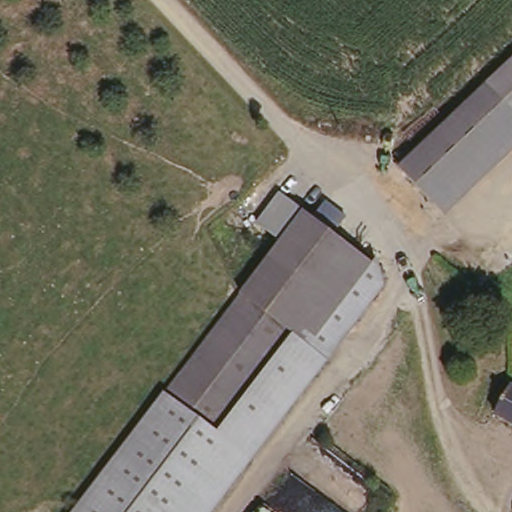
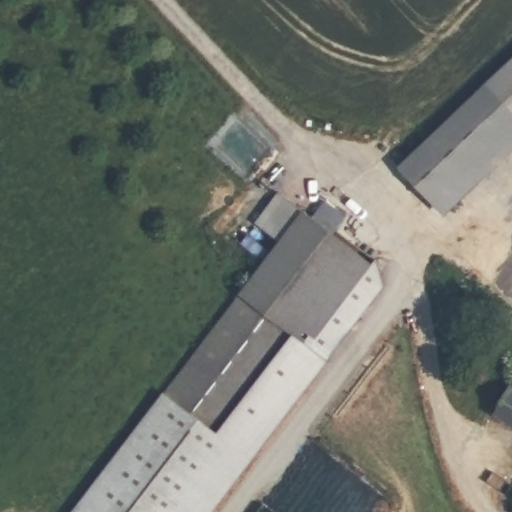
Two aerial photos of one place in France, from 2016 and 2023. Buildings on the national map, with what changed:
unchanged [(393,169),(512,58),(512,159),(448,222),(393,169)]
unchanged [(160,398),(279,241),(255,224),(280,189),(304,209),(314,216),(325,202),(345,217),(335,233),(343,238),(323,275),(285,347),(241,426),(228,448),(160,398)]
unchanged [(384,267),(387,290),(218,512),(74,512),(160,398),(228,448),(241,426),(285,347),(323,275),(343,238),(384,267)]
unchanged [(494,419),(512,390),(512,430),(494,419)]

